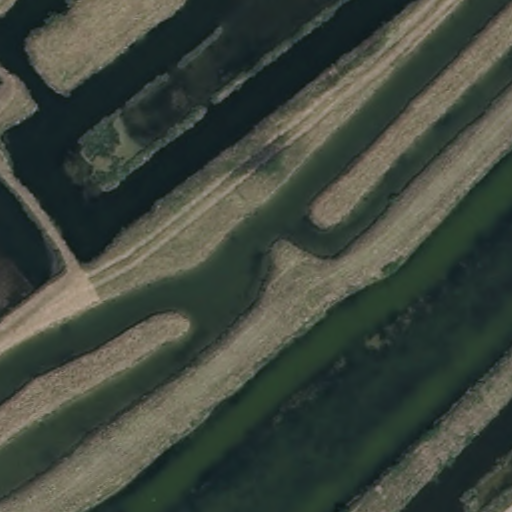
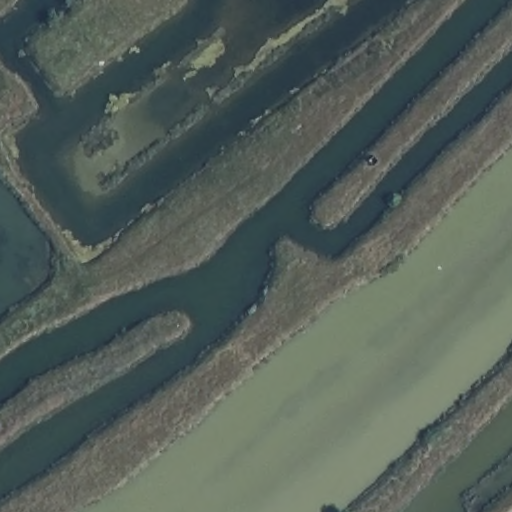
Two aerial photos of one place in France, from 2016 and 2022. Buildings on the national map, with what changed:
[]

